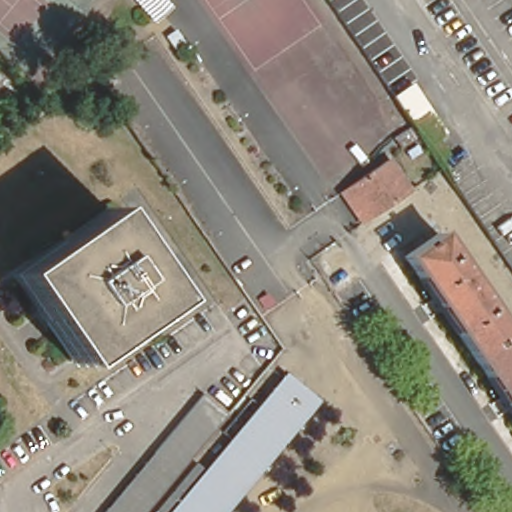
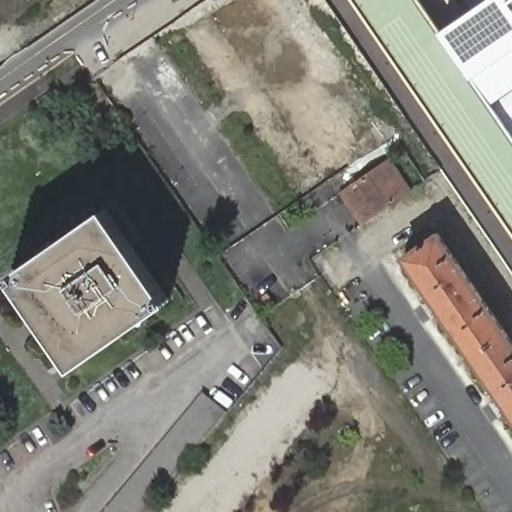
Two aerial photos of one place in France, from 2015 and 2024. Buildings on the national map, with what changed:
new [(476,11),(469,0),(512,0),(512,51),(474,79),(512,133),(512,228),(353,0),(421,0),(443,32),(476,11)]
demolished [(22,92),(0,118),(0,74),(22,92)]
unchanged [(363,207),(355,212),(341,192),(387,160),(408,191),(370,217),(363,207)]
unchanged [(104,221),(161,304),(75,363),(54,333),(40,312),(18,281),(104,221)]
unchanged [(512,342),(512,414),(508,409),(500,397),(441,311),(432,298),(404,257),(437,233),(512,342)]
demolished [(192,469),(200,476),(280,380),(311,406),(222,512),(156,512),(192,469)]
unchanged [(198,399),(222,419),(144,512),(104,512),(198,399)]

